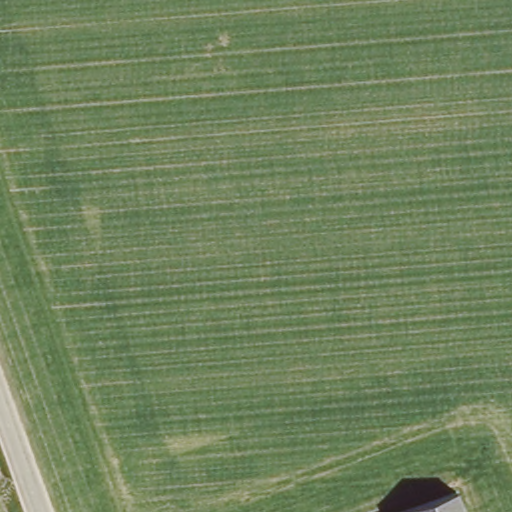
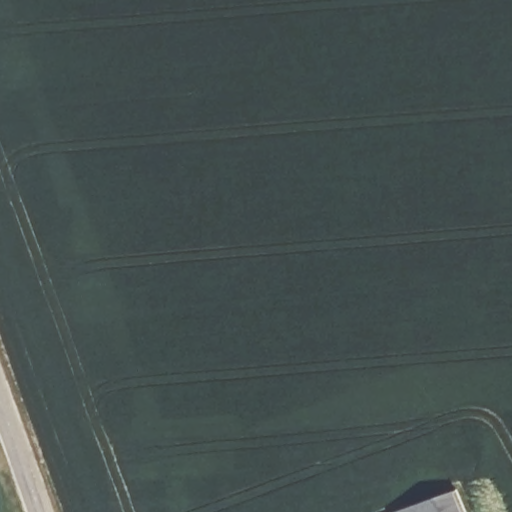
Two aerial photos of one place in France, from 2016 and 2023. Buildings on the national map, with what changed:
unchanged [(455,486),(465,512),(393,512),(392,509),(455,486)]

